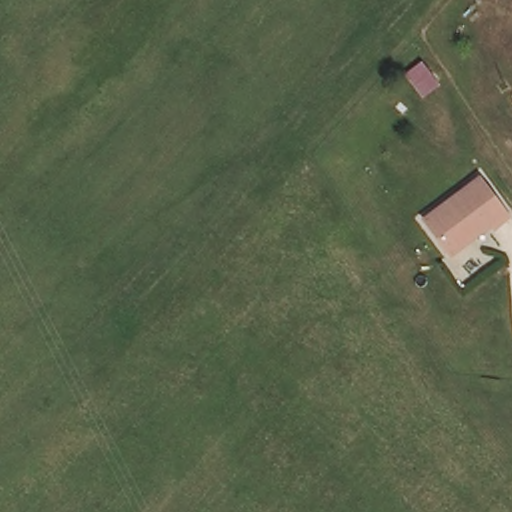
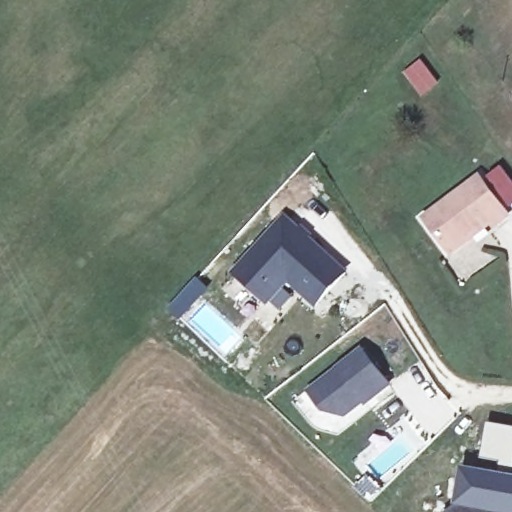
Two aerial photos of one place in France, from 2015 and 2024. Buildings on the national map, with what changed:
unchanged [(482,173),(512,211),(497,223),(492,219),(454,250),(427,215),(482,173)]
new [(287,211),(347,265),(318,297),(290,271),(269,294),(238,266),(287,211)]
new [(310,389),(362,348),(388,382),(366,400),(364,397),(344,412),(325,407),(310,389)]
new [(489,422),(512,426),(512,469),(506,468),(481,460),(489,422)]
new [(505,472),(506,468),(512,469),(512,512),(485,512),(454,503),(463,466),(505,472)]
new [(485,512),(443,512),(454,503),(485,512)]

